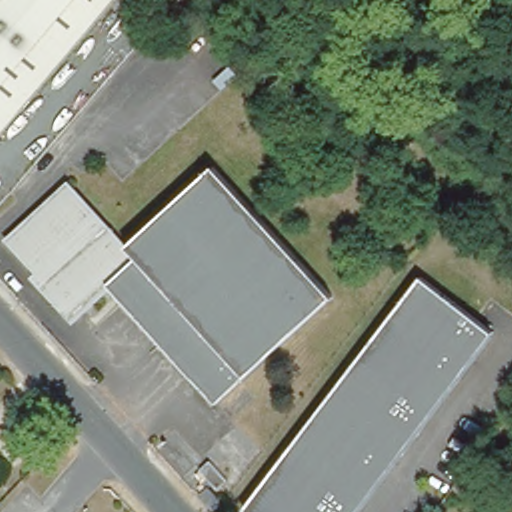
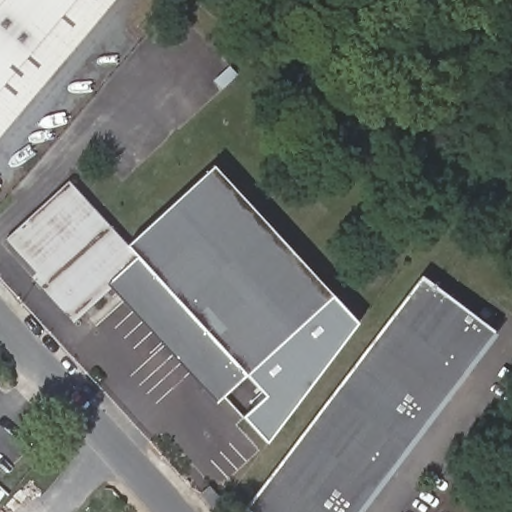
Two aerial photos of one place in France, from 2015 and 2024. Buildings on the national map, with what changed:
unchanged [(0,138),(0,0),(116,0),(0,138)]
unchanged [(218,402),(107,282),(74,312),(7,239),(67,184),(126,247),(213,167),(332,296),(218,402)]
unchanged [(497,335),(364,512),(246,512),(243,510),(421,277),(497,335)]
new [(359,324),(268,444),(244,417),(265,396),(246,376),(332,296),(359,324)]
unchanged [(214,511),(199,494),(208,486),(223,502),(214,511)]

